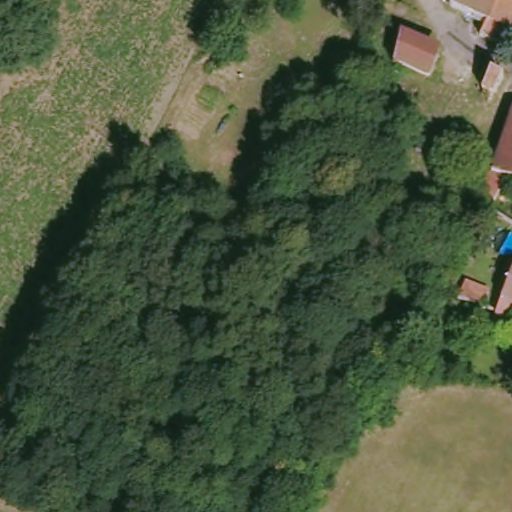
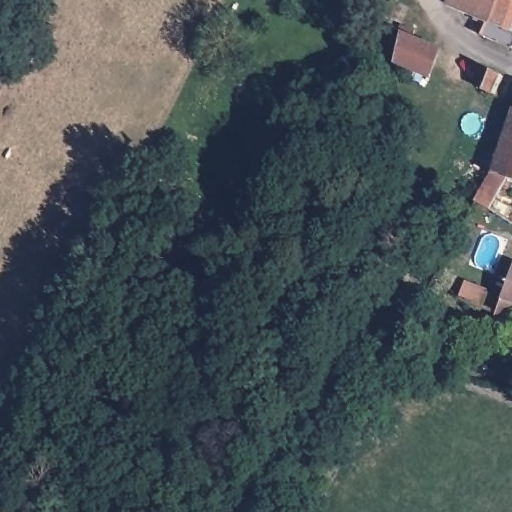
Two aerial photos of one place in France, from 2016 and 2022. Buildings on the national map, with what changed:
unchanged [(450,4),(452,0),(498,0),(489,20),(450,4)]
unchanged [(511,31),(512,32),(512,48),(482,35),(489,20),(498,0),(512,0),(512,28),(511,31)]
unchanged [(395,66),(402,30),(416,35),(414,42),(439,53),(432,81),(395,66)]
unchanged [(482,88),(491,70),(502,75),(494,94),(482,88)]
unchanged [(491,174),(497,155),(512,114),(512,179),(491,174)]
unchanged [(476,201),(477,200),(487,182),(491,174),(512,179),(512,224),(476,201)]
unchanged [(496,313),(497,308),(512,269),(512,319),(496,313)]

